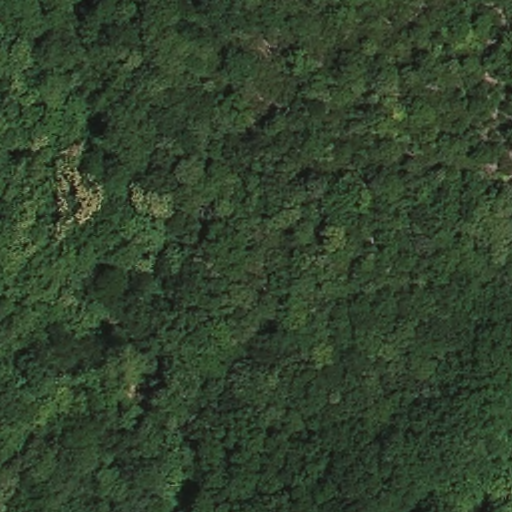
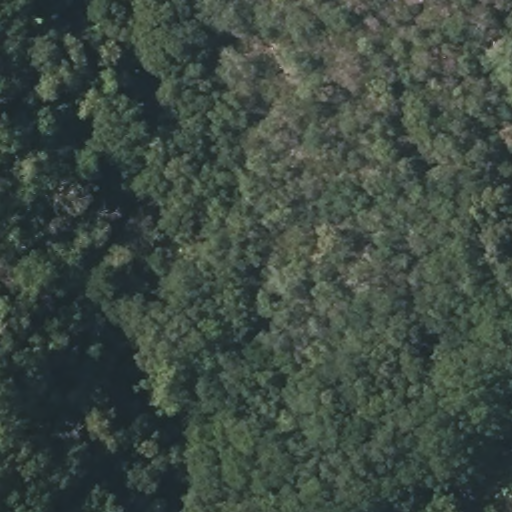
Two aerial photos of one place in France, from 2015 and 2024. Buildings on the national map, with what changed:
unchanged [(512,37),(492,41),(490,24),(509,20),(512,35),(512,37)]

